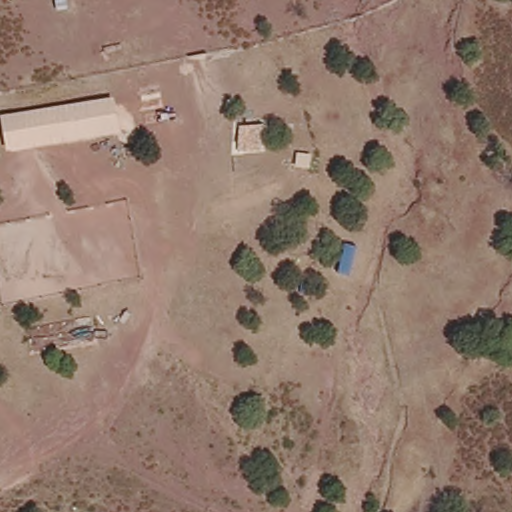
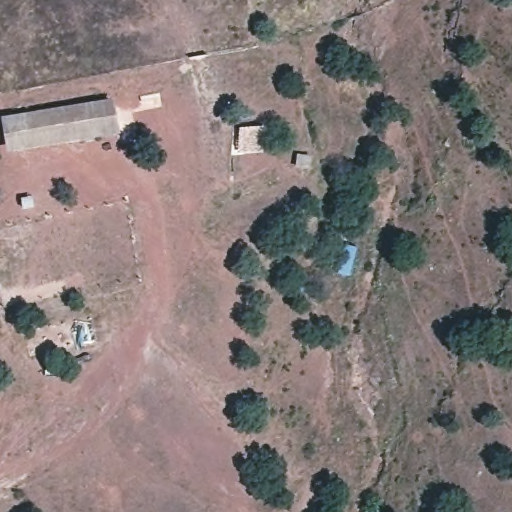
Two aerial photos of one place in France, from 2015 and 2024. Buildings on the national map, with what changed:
unchanged [(123,138),(1,155),(0,136),(0,117),(116,99),(123,138)]
unchanged [(339,245),(354,248),(348,275),(333,270),(339,245)]

